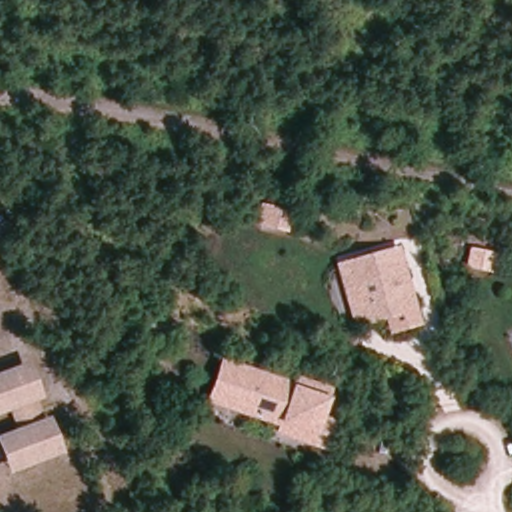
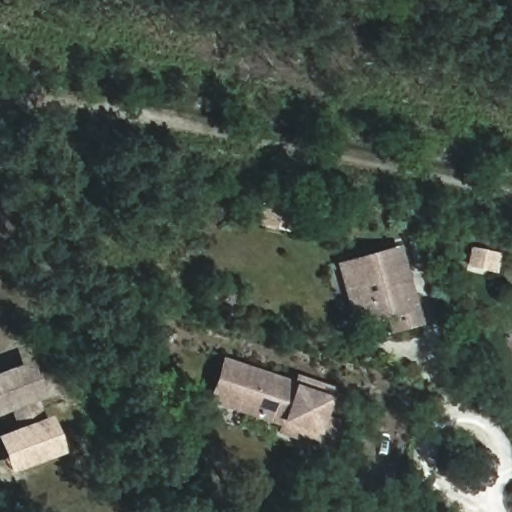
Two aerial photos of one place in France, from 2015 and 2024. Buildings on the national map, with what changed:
unchanged [(301,211),(276,205),(271,204),(275,187),(281,189),(305,193),(301,211)]
unchanged [(511,251),(508,250),(485,247),(489,230),(510,234),(512,234),(512,249),(511,251)]
unchanged [(339,269),(354,265),(395,250),(402,271),(408,289),(418,322),(393,332),(388,317),(371,322),(355,327),(339,269)]
unchanged [(210,405),(223,366),(237,371),(285,386),(297,390),(300,382),(333,393),(323,421),(337,425),(328,450),(281,436),(284,428),(273,425),(224,410),(210,405)]
unchanged [(11,437),(24,432),(14,406),(1,411),(0,411),(0,379),(25,370),(39,397),(34,399),(44,425),(47,424),(60,452),(22,466),(12,471),(0,442),(11,437)]

